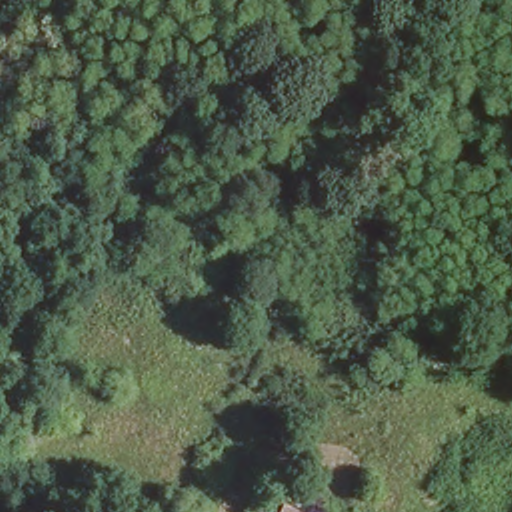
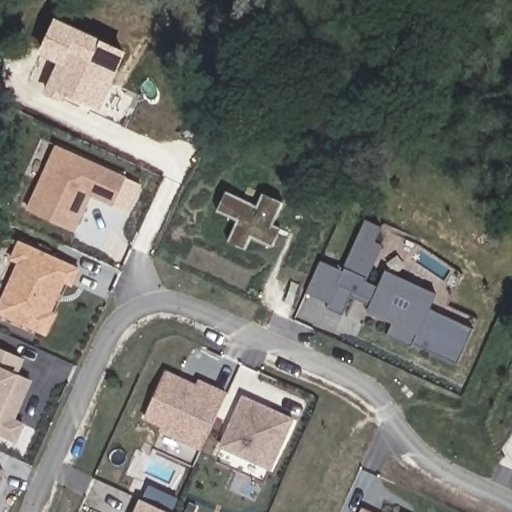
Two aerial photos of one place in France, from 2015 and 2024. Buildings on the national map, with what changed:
new [(64,96),(61,101),(42,93),(57,63),(38,55),(55,17),(100,39),(127,52),(115,73),(98,111),(64,96)]
new [(113,209),(91,199),(74,232),(25,209),(55,145),(126,177),(113,209)]
new [(272,224),(279,227),(270,246),(250,237),(244,249),(227,241),(236,220),(216,211),(224,191),(255,205),(261,193),(282,202),(272,224)]
new [(457,365),(412,345),(411,348),(386,337),(392,322),(368,312),(370,306),(350,298),(342,316),(326,310),(328,304),(304,294),(319,262),(343,272),(365,221),(380,228),(374,244),(381,246),(365,282),(378,288),(386,271),(436,294),(429,310),(473,328),(457,365)]
new [(72,287),(66,285),(53,312),(57,314),(46,336),(0,316),(0,299),(16,263),(9,260),(19,240),(81,268),(72,287)]
new [(16,420),(25,424),(17,442),(0,435),(0,348),(25,358),(18,374),(33,380),(16,420)]
new [(201,448),(184,440),(186,435),(144,416),(165,371),(208,391),(210,386),(226,393),(201,448)]
new [(208,391),(196,385),(199,381),(210,386),(208,391)]
new [(272,473),(218,449),(241,395),(296,418),(272,473)]
new [(186,435),(184,440),(161,430),(163,425),(186,435)]
new [(0,480),(0,467),(5,469),(0,480)]
demolished [(308,505),(305,512),(285,512),(262,501),(269,487),(308,505)]
new [(167,512),(133,512),(138,499),(167,512)]
new [(370,512),(360,512),(361,508),(370,512)]

